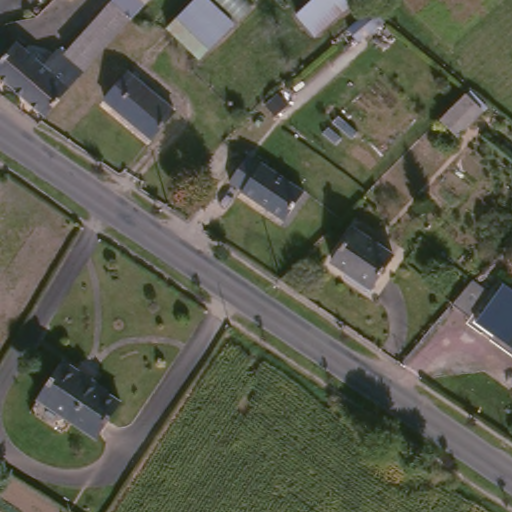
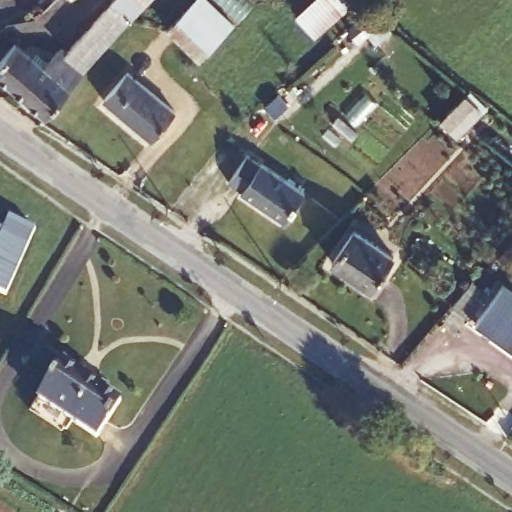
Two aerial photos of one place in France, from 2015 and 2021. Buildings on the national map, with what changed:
unchanged [(130,17),(111,1),(112,0),(147,0),(130,18),(130,17)]
unchanged [(199,59),(167,29),(194,0),(207,0),(232,24),(199,59)]
unchanged [(351,4),(315,36),(297,15),(314,0),(363,0),(355,7),(351,4)]
unchanged [(82,70),(64,54),(95,20),(111,1),(130,17),(82,70)]
unchanged [(382,21),(358,41),(348,28),(372,9),(382,21)]
unchanged [(57,49),(64,54),(82,70),(84,71),(45,116),(0,77),(0,61),(15,42),(43,66),(57,49)]
unchanged [(174,111),(151,139),(105,99),(127,72),(174,111)]
unchanged [(481,117),(457,141),(440,124),(465,100),(481,117)]
unchanged [(260,164),(260,162),(303,192),(284,221),(241,192),(242,190),(229,181),(246,155),(260,164)]
new [(0,291),(0,230),(3,231),(10,217),(33,229),(6,294),(0,291)]
unchanged [(383,250),(361,283),(321,257),(344,224),(383,250)]
unchanged [(485,297),(470,317),(452,303),(467,285),(485,297)]
unchanged [(512,291),(512,347),(476,322),(502,285),(512,291)]
unchanged [(101,385),(100,387),(115,397),(91,432),(66,417),(32,394),(58,356),(101,385)]

